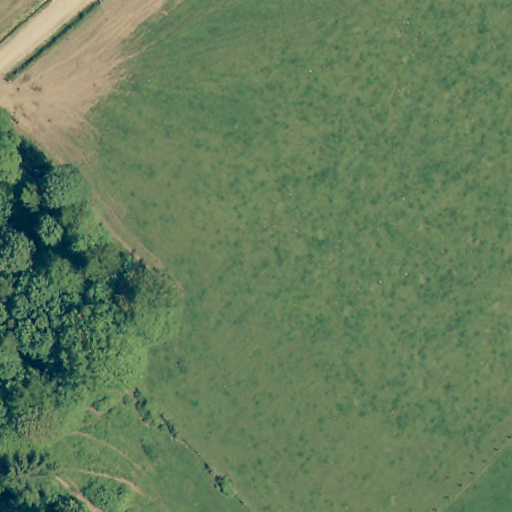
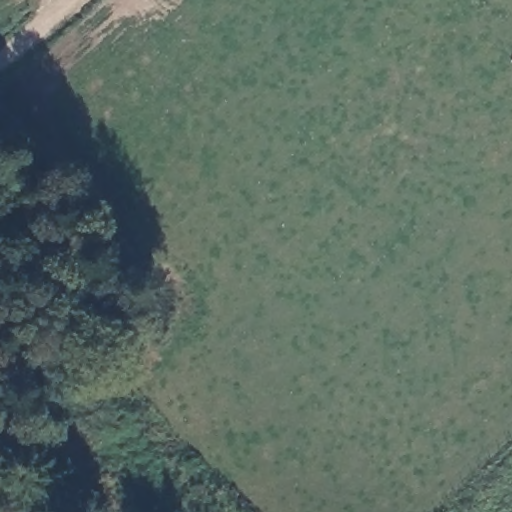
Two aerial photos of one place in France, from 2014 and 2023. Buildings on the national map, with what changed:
unchanged [(31,512),(0,512),(0,496),(8,488),(31,512)]

